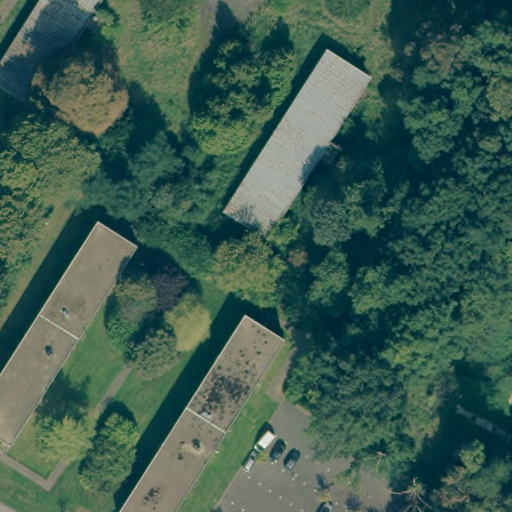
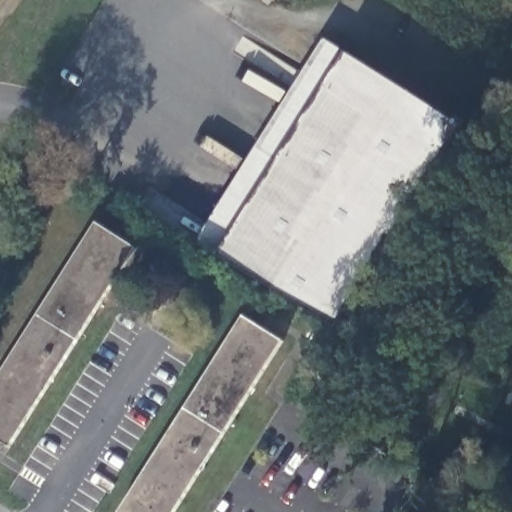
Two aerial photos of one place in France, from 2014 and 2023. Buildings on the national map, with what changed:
demolished [(101,0),(33,103),(0,81),(0,64),(41,0),(101,0)]
new [(323,40),(450,126),(331,322),(198,241),(323,40)]
demolished [(261,233),(221,207),(324,45),(364,72),(261,233)]
unchanged [(136,252),(10,449),(0,442),(0,380),(98,226),(136,252)]
unchanged [(283,339),(173,512),(118,512),(245,314),(283,339)]

